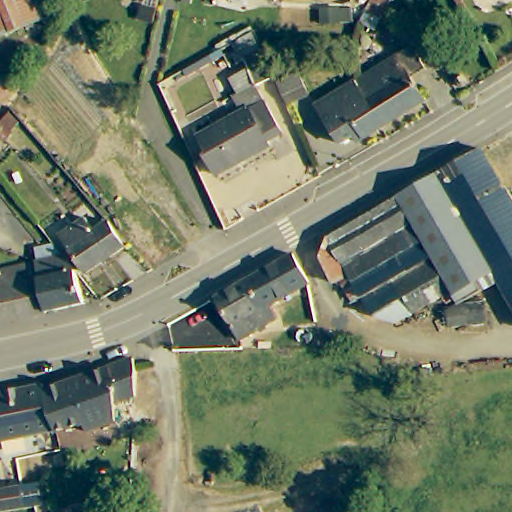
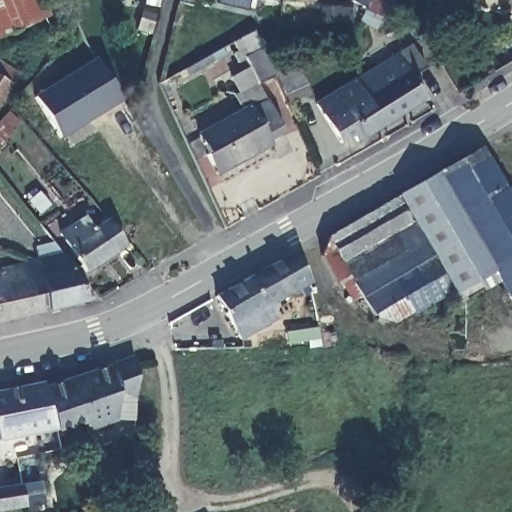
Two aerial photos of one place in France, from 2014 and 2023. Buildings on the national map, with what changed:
unchanged [(0,0),(48,0),(54,15),(0,37),(0,0)]
unchanged [(270,62),(248,74),(232,43),(255,30),(270,62)]
unchanged [(414,40),(428,63),(413,71),(427,94),(385,120),(357,75),(401,49),(414,40)]
unchanged [(0,76),(0,57),(21,70),(12,84),(0,99),(0,76)]
new [(123,100),(60,139),(34,96),(96,57),(123,100)]
unchanged [(357,75),(385,120),(360,136),(352,124),(341,131),(338,132),(318,99),(345,83),(357,75)]
unchanged [(467,91),(457,97),(449,82),(460,77),(467,91)]
unchanged [(280,127),(267,134),(272,143),(217,172),(206,151),(209,150),(199,132),(264,97),(280,127)]
unchanged [(385,320),(376,310),(349,269),(340,274),(335,277),(322,251),(330,230),(357,215),(416,181),(466,151),(482,143),(512,196),(512,297),(494,266),(415,311),(392,324),(385,320)]
unchanged [(117,225),(129,247),(86,268),(70,242),(94,230),(87,220),(104,210),(117,225)]
unchanged [(34,245),(55,241),(65,254),(76,268),(86,302),(49,310),(35,260),(38,260),(34,245)]
unchanged [(310,277),(271,298),(280,315),(242,335),(217,291),(225,287),(265,264),(294,248),(310,277)]
unchanged [(0,321),(0,268),(35,260),(49,310),(0,321)]
demolished [(292,350),(257,350),(258,333),(292,333),(292,350)]
unchanged [(93,376),(90,361),(101,357),(130,350),(134,370),(125,383),(123,386),(119,426),(87,433),(87,425),(56,433),(44,385),(93,376)]
unchanged [(0,445),(0,393),(44,385),(56,433),(0,445)]
unchanged [(29,492),(32,512),(0,512),(0,496),(25,492),(29,492)]

